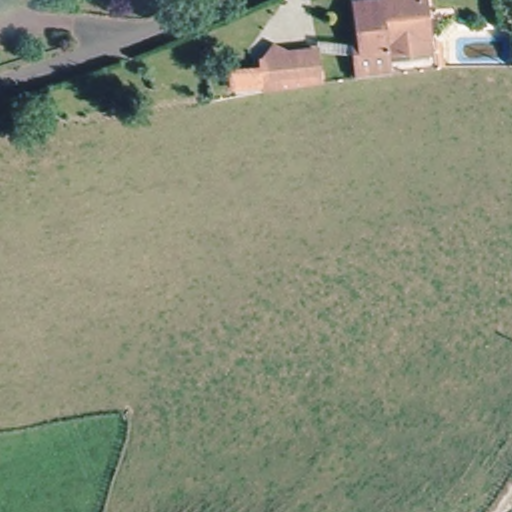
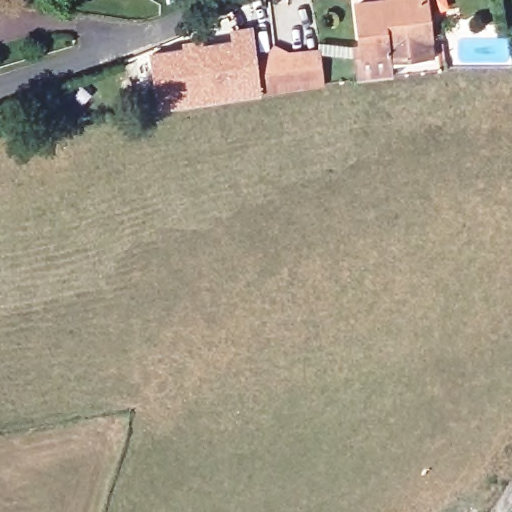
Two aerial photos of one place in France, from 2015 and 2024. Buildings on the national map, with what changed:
unchanged [(428,60),(387,64),(388,74),(356,76),(354,51),(361,50),(357,2),(384,0),(422,0),(425,37),(428,60)]
new [(181,44),(180,39),(200,36),(201,41),(230,36),(229,26),(252,22),(256,56),(260,86),(260,91),(155,106),(149,49),(181,44)]
unchanged [(256,56),(272,44),(286,50),(314,46),(318,79),(260,86),(256,56)]

